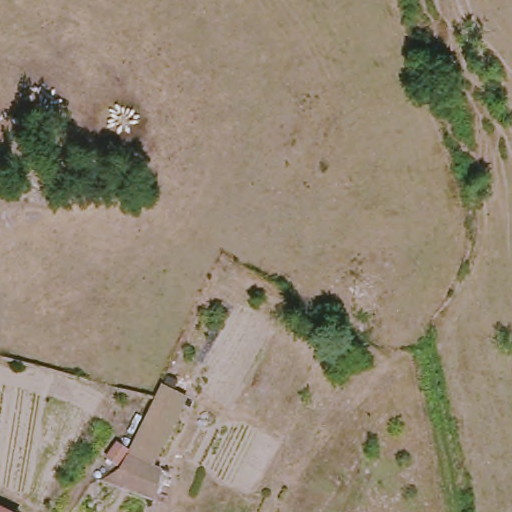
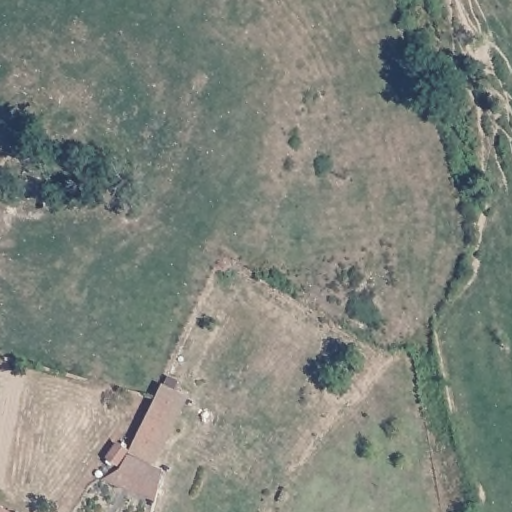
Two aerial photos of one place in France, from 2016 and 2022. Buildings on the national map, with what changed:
unchanged [(125,457),(157,398),(182,413),(150,472),(161,478),(157,495),(110,465),(125,457)]
unchanged [(0,511),(2,512),(0,512),(0,511)]

